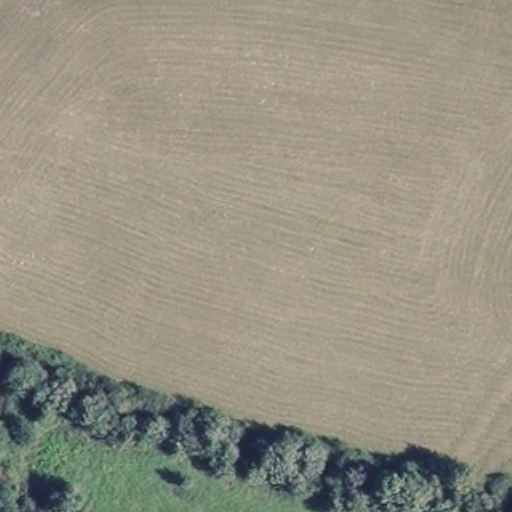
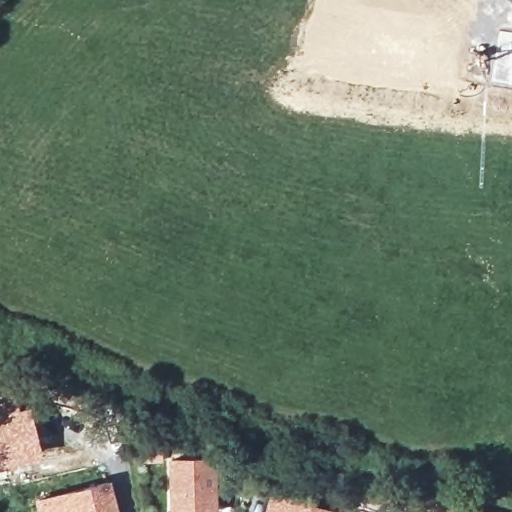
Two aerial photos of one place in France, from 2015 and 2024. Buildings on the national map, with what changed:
new [(42,455),(0,465),(0,385),(25,381),(42,455)]
new [(215,457),(217,512),(169,512),(167,458),(215,457)]
new [(38,512),(34,498),(109,482),(116,512),(38,512)]
new [(265,512),(271,492),(346,512),(265,512)]
new [(471,512),(472,508),(489,512),(471,512)]

